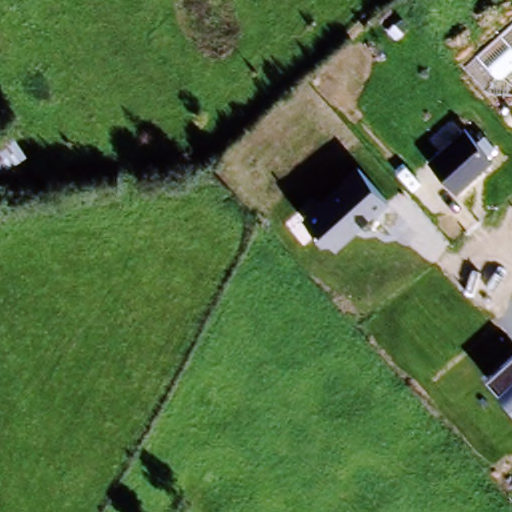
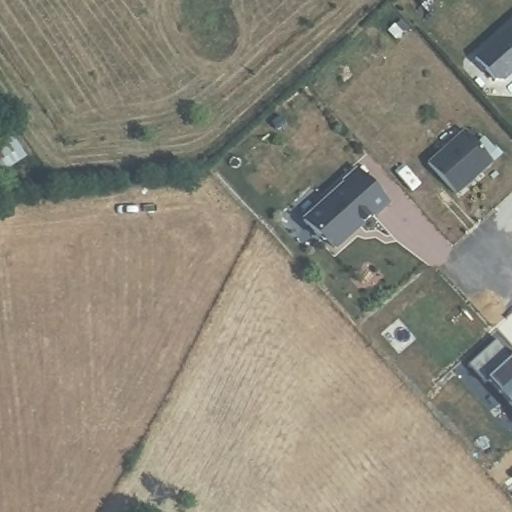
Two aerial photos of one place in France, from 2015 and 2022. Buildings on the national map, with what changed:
new [(495,80),(475,56),(512,23),(512,74),(505,80),(495,80)]
unchanged [(458,195),(430,165),(465,132),(492,162),(458,195)]
unchanged [(302,221),(358,167),(392,203),(335,253),(302,221)]
unchanged [(512,407),(488,381),(512,361),(512,407)]

